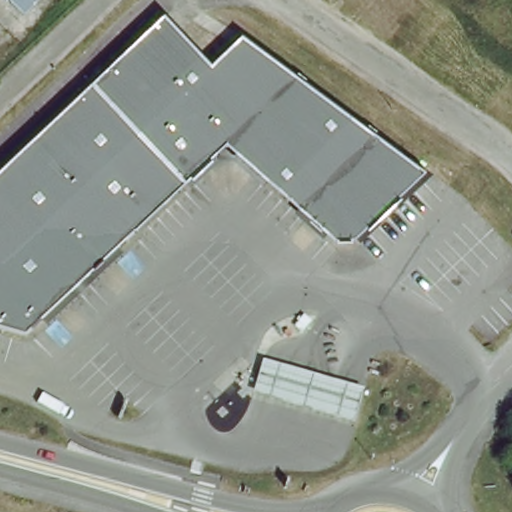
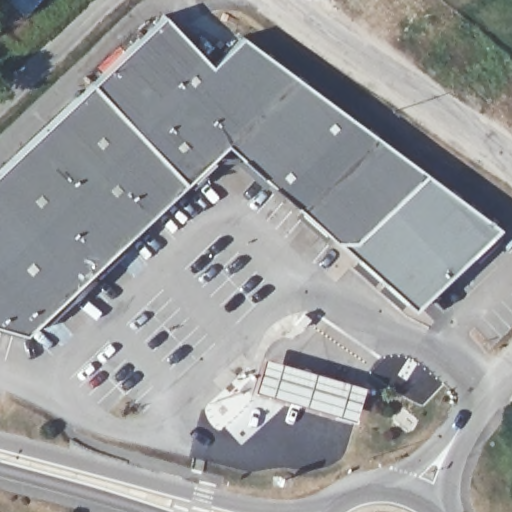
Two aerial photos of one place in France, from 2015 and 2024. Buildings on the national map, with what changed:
unchanged [(24,16),(7,0),(39,0),(24,16)]
unchanged [(213,62),(242,36),(424,169),(399,195),(366,227),(352,236),(338,239),(227,142),(44,312),(42,318),(24,330),(0,323),(0,170),(168,14),(213,62)]
new [(366,227),(399,195),(424,169),(496,225),(408,305),(338,239),(352,236),(366,227)]
unchanged [(365,387),(356,420),(255,391),(265,358),(365,387)]

